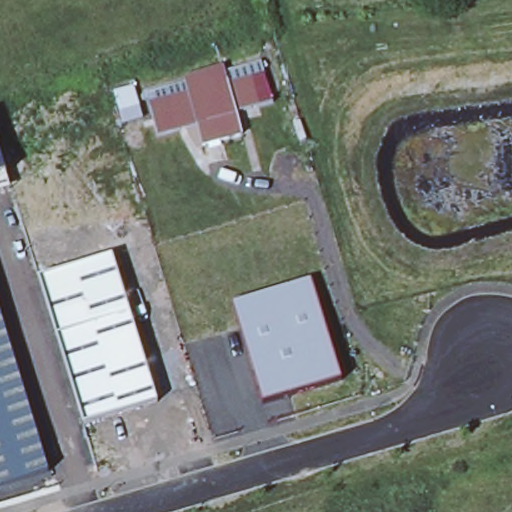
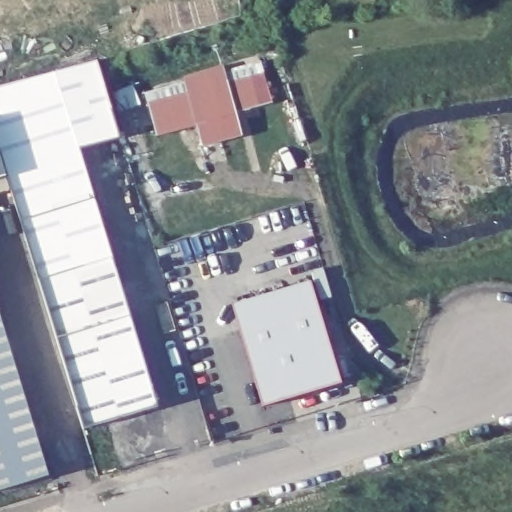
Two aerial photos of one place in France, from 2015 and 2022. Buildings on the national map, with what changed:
new [(6,176),(0,157),(0,88),(98,60),(120,138),(80,149),(113,257),(40,278),(6,176)]
unchanged [(241,109),(240,110),(234,111),(240,134),(202,144),(196,124),(156,134),(145,92),(185,81),(183,76),(222,66),(225,73),(236,69),(237,69),(260,64),(271,101),(241,109)]
unchanged [(0,178),(0,157),(6,176),(0,178)]
unchanged [(113,257),(157,406),(83,428),(40,278),(113,257)]
unchanged [(231,303),(311,280),(345,383),(265,407),(231,303)]
unchanged [(0,489),(0,318),(51,474),(0,489)]

